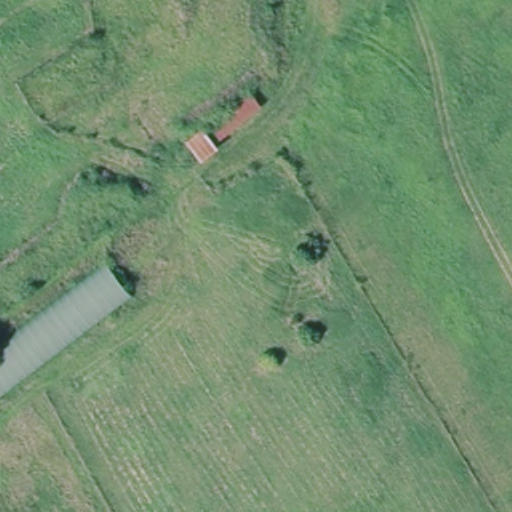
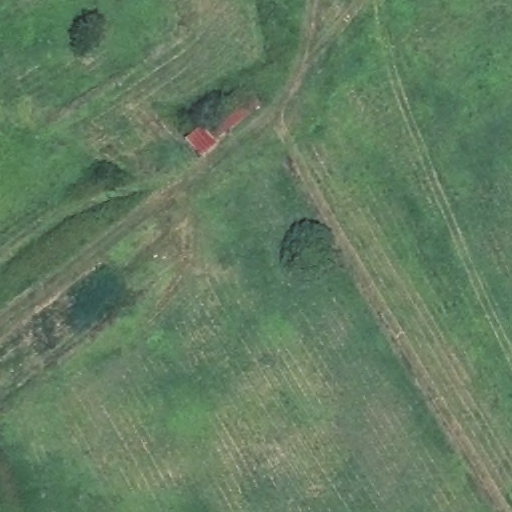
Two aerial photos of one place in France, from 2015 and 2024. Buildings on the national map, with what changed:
unchanged [(177,138),(243,89),(261,106),(210,141),(216,148),(194,157),(177,138)]
demolished [(107,263),(133,299),(0,400),(0,346),(107,263)]

